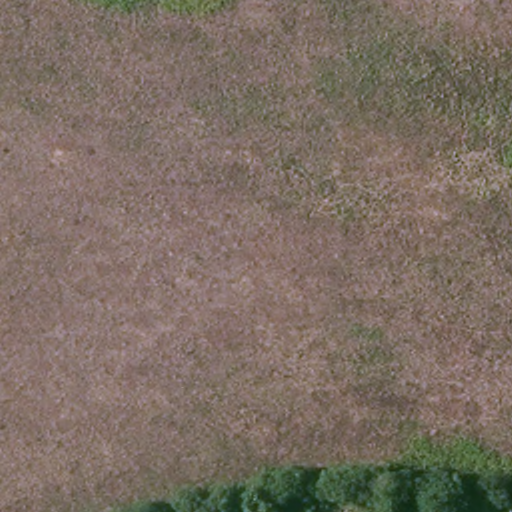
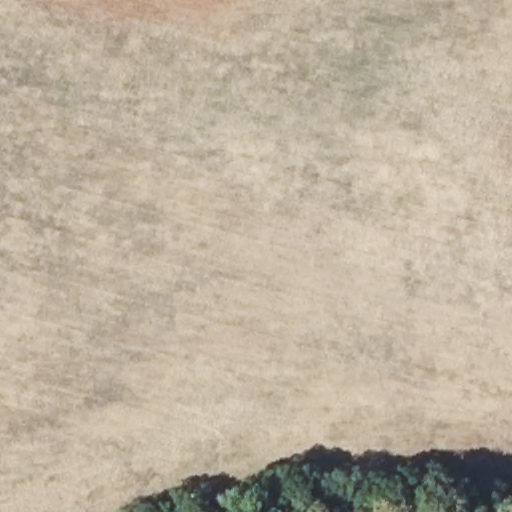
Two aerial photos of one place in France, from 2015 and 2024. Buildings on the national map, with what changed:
[]

